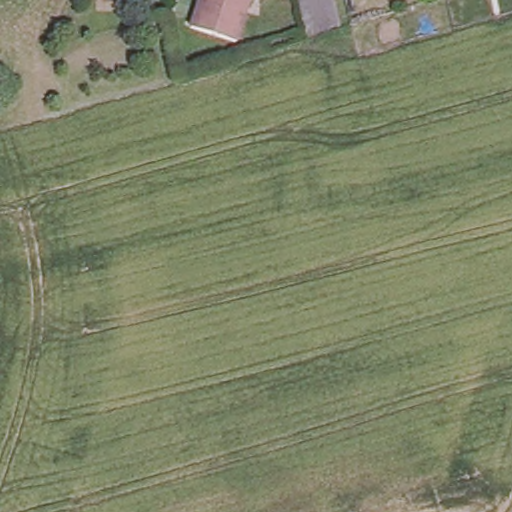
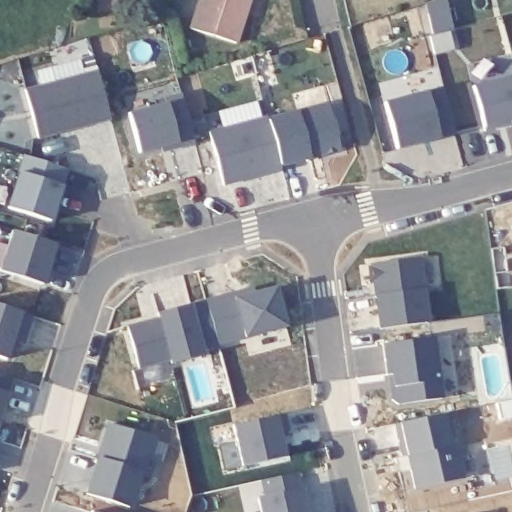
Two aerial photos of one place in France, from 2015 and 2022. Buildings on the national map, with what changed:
unchanged [(205,0),(252,0),(236,50),(193,36),(205,0)]
new [(110,119),(38,138),(24,89),(96,69),(110,119)]
new [(472,85),(512,75),(512,121),(483,129),(472,85)]
new [(456,134),(444,134),(444,137),(396,150),(383,101),(427,91),(427,89),(443,84),(456,134)]
new [(169,104),(179,141),(144,151),(134,114),(169,104)]
new [(284,168),(272,123),(332,106),(344,151),(324,157),(314,160),(284,168)]
new [(281,169),(223,185),(208,130),(267,114),(281,169)]
new [(66,167),(61,186),(50,221),(8,208),(19,171),(27,156),(66,167)]
new [(56,243),(43,286),(0,272),(0,269),(11,230),(56,243)]
new [(384,333),(379,298),(378,288),(376,267),(422,261),(430,327),(384,333)]
new [(289,330),(221,348),(209,303),(237,296),(256,291),(257,296),(279,290),(289,330)]
new [(204,352),(171,365),(169,359),(138,370),(126,324),(157,312),(191,302),(204,352)]
new [(22,312),(33,316),(25,344),(18,342),(13,359),(8,354),(6,361),(0,359),(0,304),(22,312)]
new [(461,395),(442,398),(394,405),(386,343),(434,336),(453,334),(461,395)]
new [(8,392),(0,419),(0,372),(13,376),(8,392)]
new [(290,430),(280,429),(286,457),(242,467),(232,424),(277,414),(286,413),(290,430)]
new [(406,460),(399,428),(448,417),(455,448),(462,447),(466,464),(462,465),(466,482),(418,492),(414,473),(411,459),(406,460)]
new [(105,451),(113,428),(158,442),(146,477),(143,476),(133,511),(90,497),(102,462),(105,451)]
new [(302,487),(306,512),(261,512),(258,498),(267,497),(262,478),(299,472),(302,487)]

